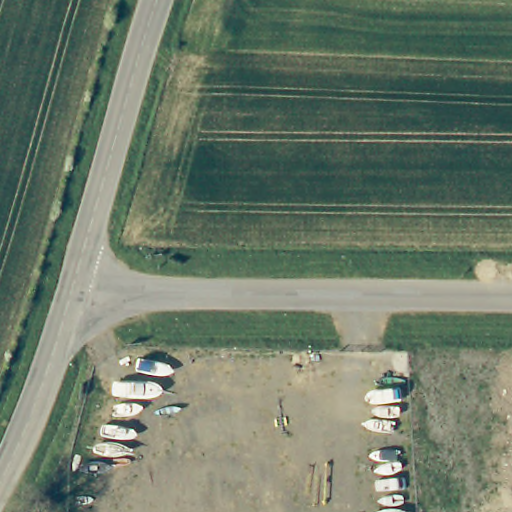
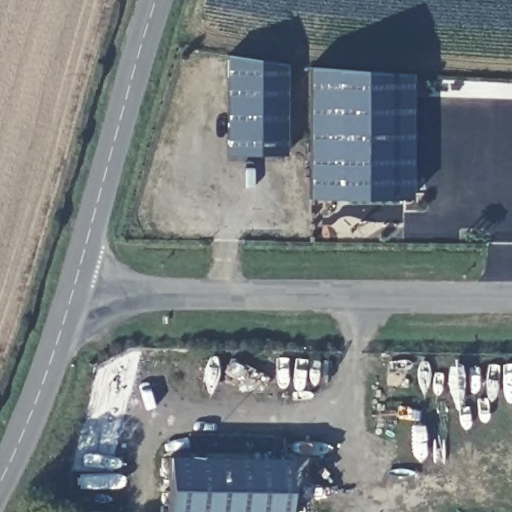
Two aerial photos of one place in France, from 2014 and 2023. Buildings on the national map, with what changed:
new [(285,155),(227,157),(227,55),(286,64),(285,155)]
new [(310,199),(310,67),(411,75),(412,200),(310,199)]
new [(288,512),(166,512),(168,457),(288,458),(288,512)]

